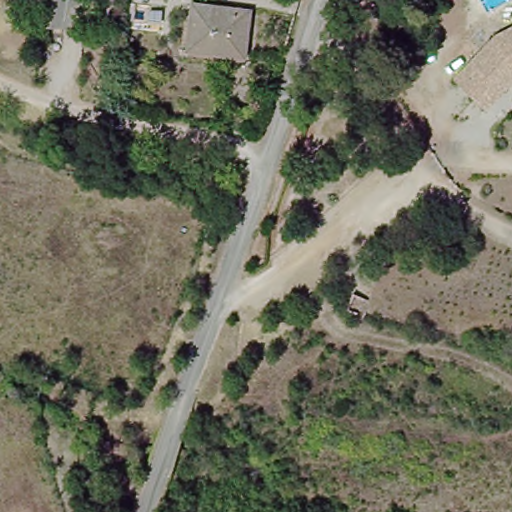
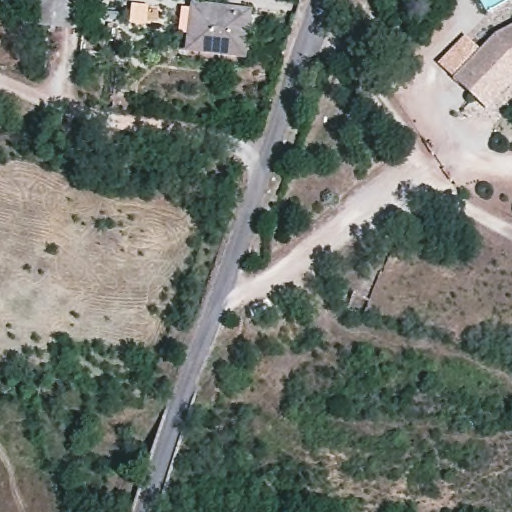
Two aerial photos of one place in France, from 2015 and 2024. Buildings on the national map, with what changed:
unchanged [(40,31),(41,0),(78,0),(76,34),(40,31)]
unchanged [(185,52),(191,5),(249,12),(243,60),(185,52)]
unchanged [(454,75),(497,32),(512,26),(512,77),(484,105),(473,95),(454,75)]

